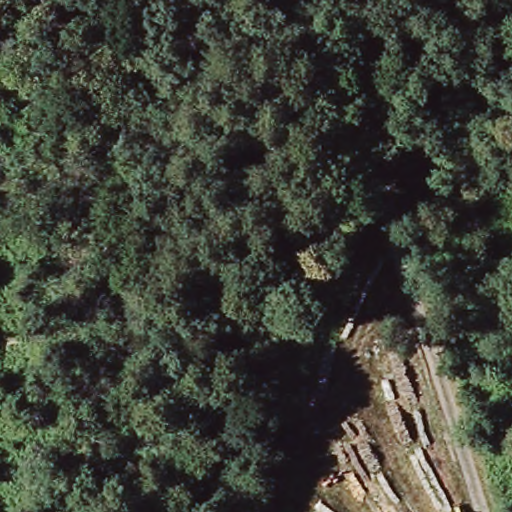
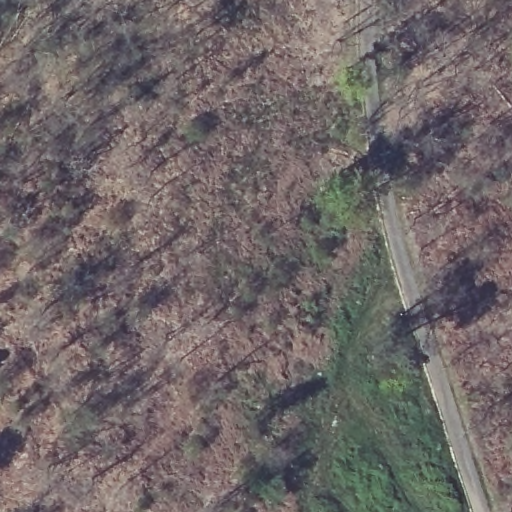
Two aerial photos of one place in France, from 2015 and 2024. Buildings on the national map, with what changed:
[]

